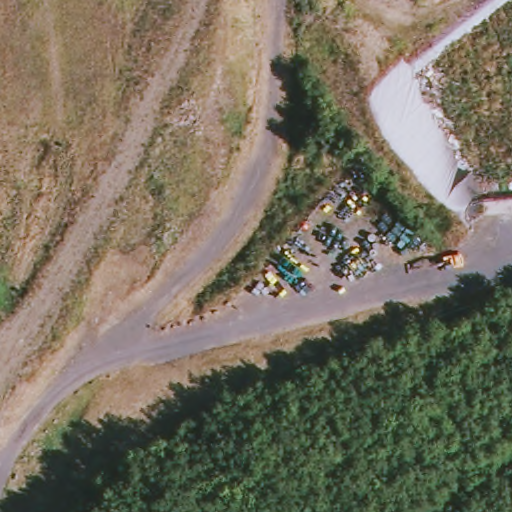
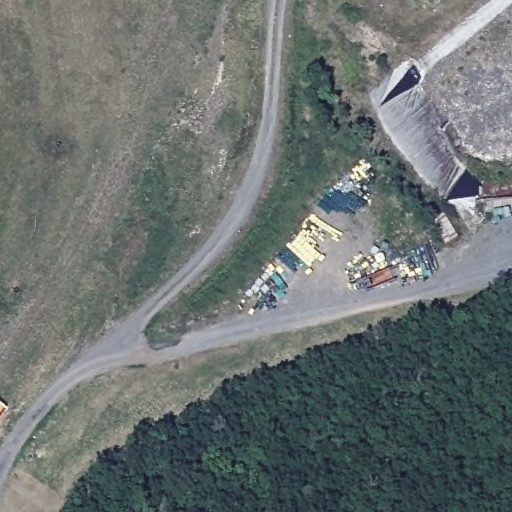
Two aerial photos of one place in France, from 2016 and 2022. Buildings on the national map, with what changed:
[]

